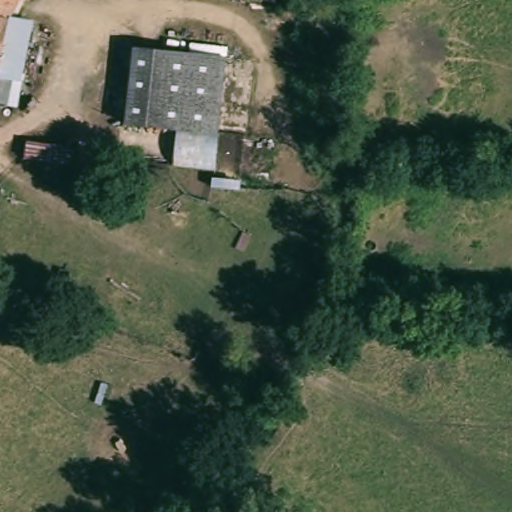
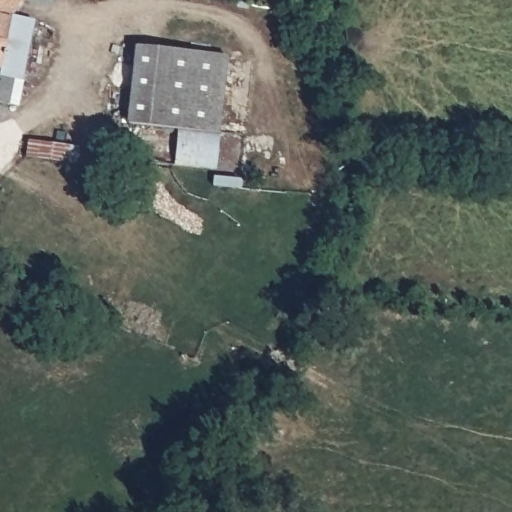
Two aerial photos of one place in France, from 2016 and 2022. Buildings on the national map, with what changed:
unchanged [(0,14),(0,0),(28,0),(30,0),(24,20),(0,14)]
unchanged [(0,66),(0,14),(24,20),(15,70),(0,66)]
unchanged [(15,70),(24,20),(54,27),(37,75),(15,70)]
unchanged [(143,41),(227,60),(208,133),(126,114),(143,41)]
unchanged [(28,80),(15,108),(1,105),(13,76),(28,80)]

